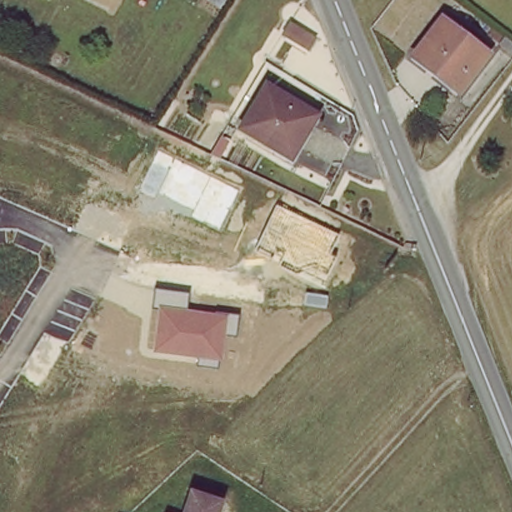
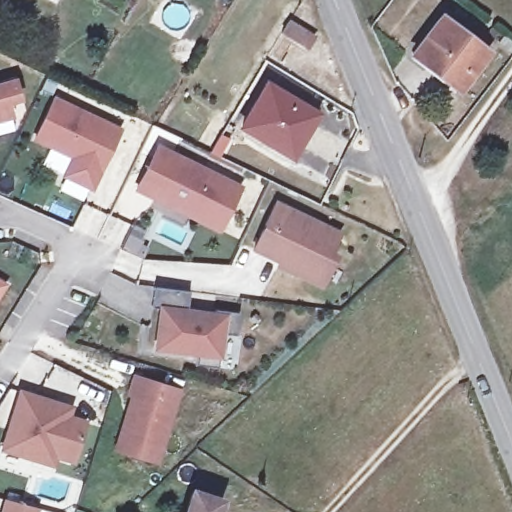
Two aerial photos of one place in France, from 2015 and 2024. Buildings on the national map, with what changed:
demolished [(149,6),(141,0),(152,0),(149,6)]
unchanged [(489,55),(456,97),(406,57),(438,15),(489,55)]
unchanged [(312,41),(305,53),(282,40),(288,27),(312,41)]
unchanged [(512,51),(509,55),(496,45),(502,38),(512,45),(512,51)]
new [(21,75),(25,93),(13,96),(17,110),(0,114),(0,80),(21,75)]
unchanged [(309,116),(289,157),(241,134),(261,93),(309,116)]
new [(57,94),(122,125),(93,184),(65,171),(75,152),(37,134),(57,94)]
new [(159,144),(241,185),(220,226),(191,211),(194,205),(159,188),(157,193),(138,185),(159,144)]
unchanged [(277,204),(336,234),(330,250),(337,254),(326,279),(302,269),(301,273),(255,251),(277,204)]
new [(5,280),(0,287),(0,276),(5,280)]
unchanged [(189,291),(188,309),(220,313),(220,311),(240,313),(237,337),(225,336),(219,369),(198,366),(198,360),(153,353),(158,306),(152,306),(155,286),(189,291)]
new [(139,453),(114,445),(132,391),(128,390),(133,373),(178,388),(160,444),(155,458),(139,453)]
new [(51,460),(1,444),(7,424),(11,426),(13,420),(9,418),(20,387),(70,403),(67,413),(83,418),(70,456),(67,466),(51,460)]
new [(32,503),(29,512),(0,512),(0,499),(2,494),(32,503)]
unchanged [(221,506),(219,512),(180,512),(186,495),(221,506)]

